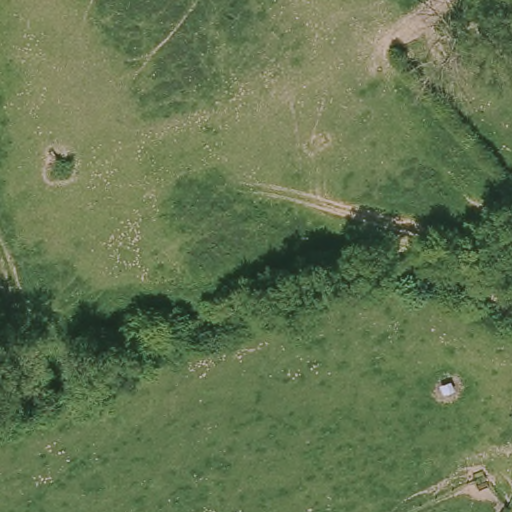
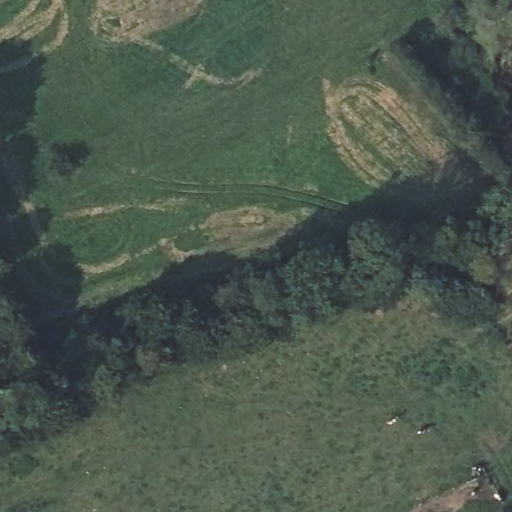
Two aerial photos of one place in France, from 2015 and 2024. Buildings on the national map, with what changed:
[]

